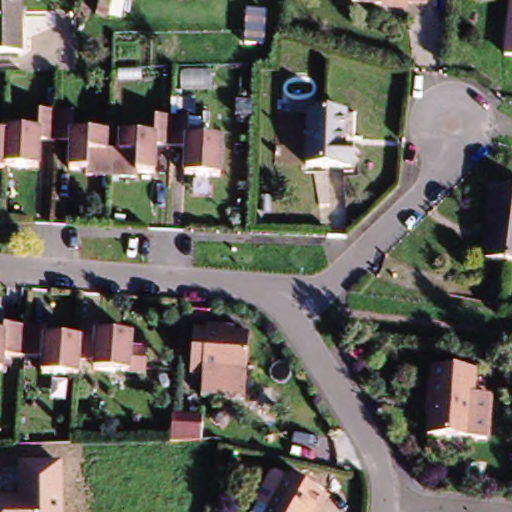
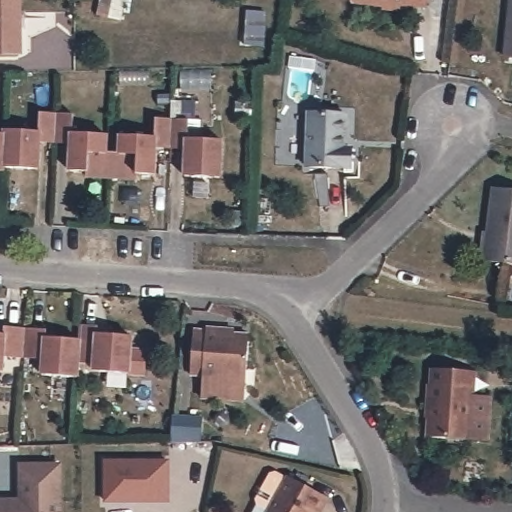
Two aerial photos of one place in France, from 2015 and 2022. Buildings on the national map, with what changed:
unchanged [(23,0),(23,56),(0,57),(0,0),(23,0)]
unchanged [(402,1),(401,7),(347,1),(347,0),(422,0),(419,3),(402,1)]
unchanged [(226,175),(189,172),(190,150),(156,146),(154,170),(125,171),(124,174),(96,172),(97,167),(67,168),(68,145),(38,145),(35,165),(1,163),(1,167),(0,167),(0,126),(3,126),(3,122),(37,124),(37,111),(72,113),(71,126),(102,128),(100,143),(126,146),(127,130),(156,131),(157,117),(193,118),(191,134),(229,135),(226,175)]
unchanged [(341,112),(341,143),(351,143),(350,169),(302,168),(304,113),(341,112)]
unchanged [(496,188),(512,189),(512,261),(489,259),(496,188)]
unchanged [(145,383),(93,378),(94,372),(76,371),(75,376),(41,374),(43,369),(0,368),(0,330),(1,331),(0,322),(44,324),(45,335),(77,334),(79,319),(96,322),(96,336),(127,338),(126,355),(148,358),(145,383)]
unchanged [(226,334),(249,335),(245,381),(187,377),(190,343),(191,335),(201,335),(201,328),(227,330),(226,334)]
unchanged [(433,385),(435,369),(477,374),(469,442),(428,437),(432,406),(428,406),(431,385),(433,385)]
unchanged [(209,420),(208,439),(178,438),(179,418),(209,420)]
new [(168,459),(169,499),(106,501),(105,461),(168,459)]
unchanged [(64,512),(0,512),(0,497),(18,497),(19,462),(63,462),(64,512)]
unchanged [(253,507),(251,502),(264,474),(269,472),(281,477),(324,495),(315,512),(251,512),(253,507)]

